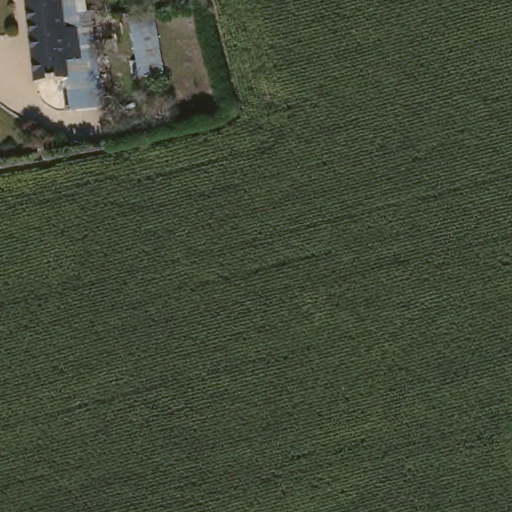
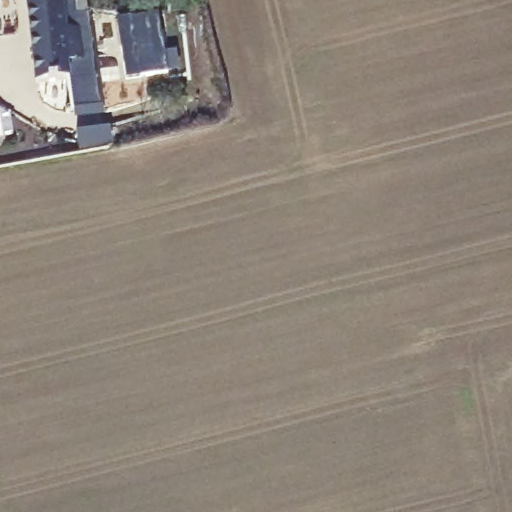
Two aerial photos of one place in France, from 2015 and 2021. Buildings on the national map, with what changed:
unchanged [(87,9),(94,56),(101,104),(65,109),(61,77),(30,80),(21,0),(82,0),(82,8),(87,9)]
unchanged [(127,26),(146,23),(153,66),(135,69),(127,26)]

